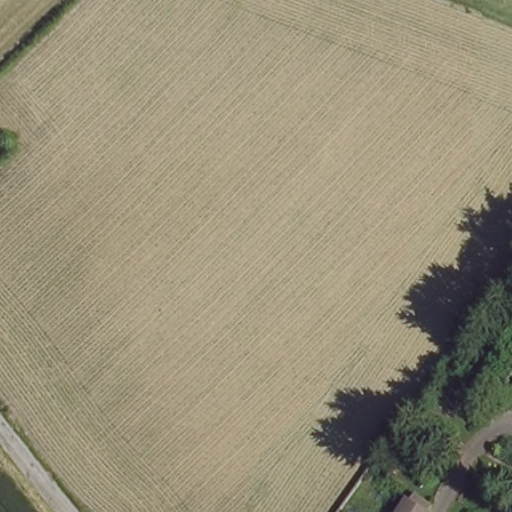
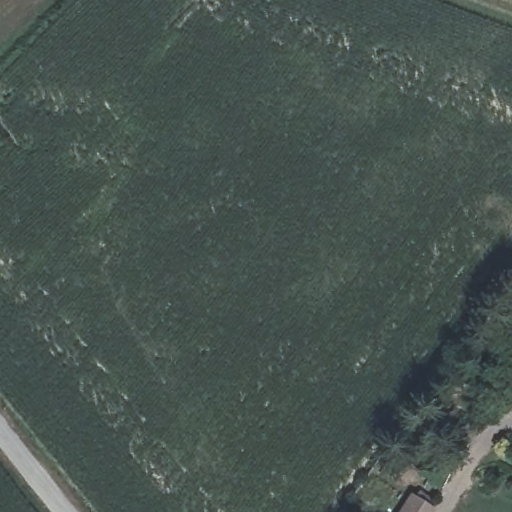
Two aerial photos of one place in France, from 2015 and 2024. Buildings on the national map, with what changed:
unchanged [(415,494),(445,512),(403,512),(415,494)]

